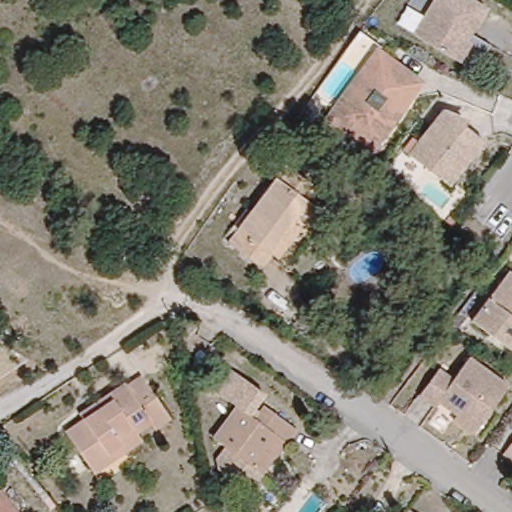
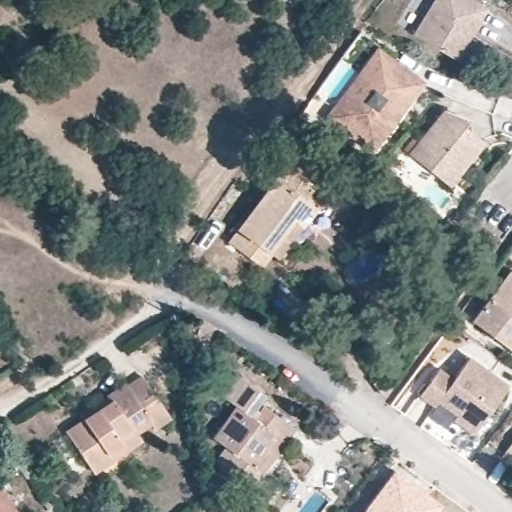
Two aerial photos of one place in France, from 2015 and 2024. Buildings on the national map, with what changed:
unchanged [(467,39),(472,42),(460,62),(414,34),(434,0),(473,0),(486,7),(467,39)]
unchanged [(329,112),(343,92),(378,45),(412,70),(414,87),(380,133),(373,144),(329,112)]
unchanged [(429,170),(409,154),(415,146),(443,110),(484,142),(456,178),(450,186),(429,170)]
unchanged [(269,258),(260,270),(229,247),(286,169),(313,189),(320,194),(310,207),(317,212),(303,231),(278,265),(269,258)]
unchanged [(509,270),(512,272),(512,351),(471,320),(509,270)]
unchanged [(453,418),(457,414),(439,401),(435,406),(420,395),(439,369),(452,379),(469,356),(508,385),(477,429),(474,433),(453,418)]
unchanged [(271,394),(266,402),(302,428),(261,487),(216,461),(225,447),(214,438),(236,406),(209,386),(227,364),(271,394)]
unchanged [(152,423),(137,433),(142,441),(94,473),(66,431),(83,419),(79,413),(95,403),(124,383),(127,386),(144,375),(173,418),(156,429),(152,423)]
unchanged [(390,388),(382,394),(373,383),(381,376),(390,388)]
unchanged [(512,447),(512,459),(507,454),(512,447)]
new [(435,512),(362,512),(394,469),(441,504),(435,512)]
unchanged [(14,512),(0,512),(0,494),(14,512)]

